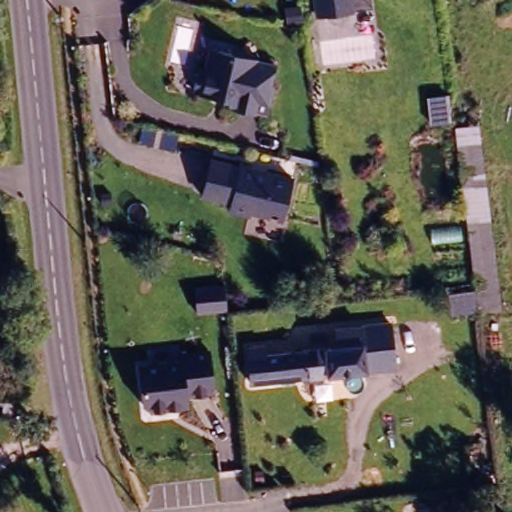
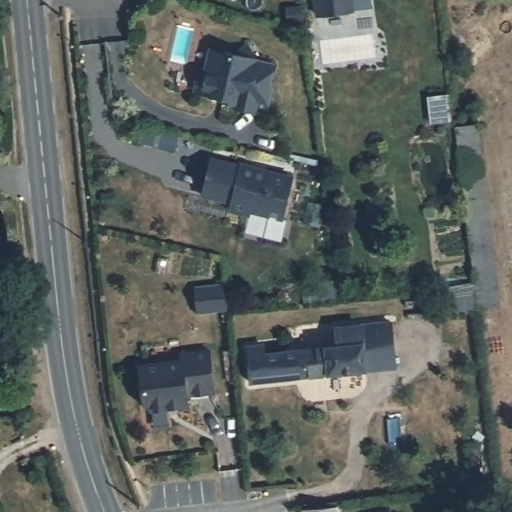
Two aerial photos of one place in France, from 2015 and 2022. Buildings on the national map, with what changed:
unchanged [(320,16),(317,0),(353,0),(354,12),(320,16)]
unchanged [(270,116),(240,110),(240,107),(203,100),(214,50),(233,53),(251,41),(259,59),(280,64),(270,116)]
unchanged [(470,290),(453,126),(468,126),(489,305),(471,307),(470,290)]
unchanged [(294,175),(285,220),(230,208),(231,204),(202,198),(212,156),(294,175)]
unchanged [(9,271),(0,307),(0,268),(9,271)]
unchanged [(268,376),(267,370),(260,370),(256,331),(285,330),(287,342),(353,338),(352,319),(378,317),(381,368),(268,376)]
unchanged [(216,393),(190,396),(191,406),(143,408),(140,363),(181,360),(180,353),(211,350),(216,393)]

